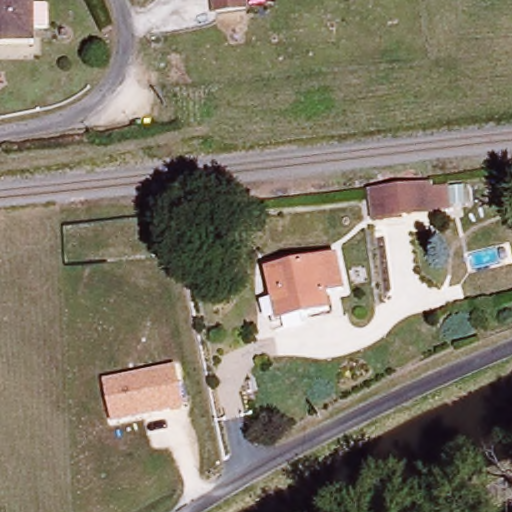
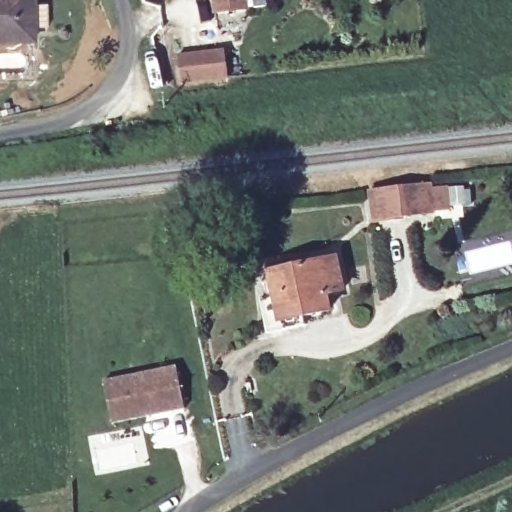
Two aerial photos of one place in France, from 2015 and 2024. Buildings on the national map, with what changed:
unchanged [(0,0),(33,0),(33,3),(50,3),(50,28),(34,28),(34,43),(0,44),(0,0)]
unchanged [(220,16),(218,0),(248,0),(250,12),(220,16)]
new [(178,55),(224,49),(227,77),(180,82),(178,55)]
unchanged [(435,211),(404,215),(404,218),(372,221),(369,191),(432,184),(435,204),(435,211)]
unchanged [(331,263),(336,295),(320,298),(324,316),(275,326),(265,275),(331,263)]
unchanged [(176,366),(184,410),(111,425),(103,381),(176,366)]

